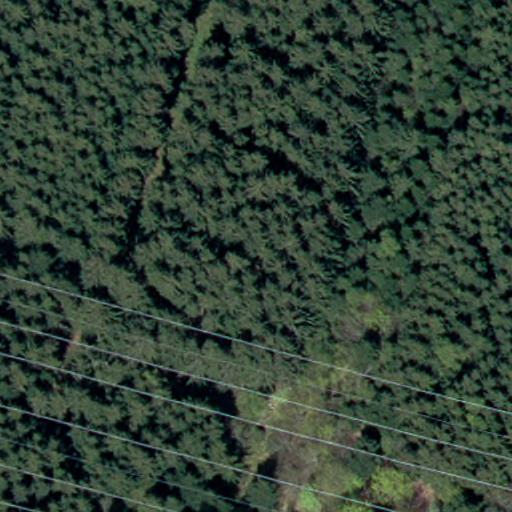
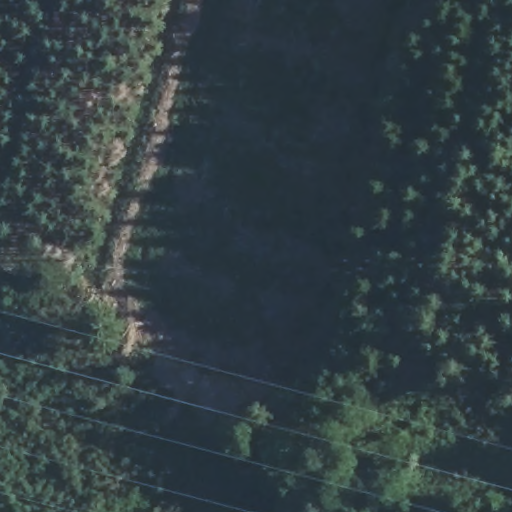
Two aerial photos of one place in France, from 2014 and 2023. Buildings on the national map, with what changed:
[]

